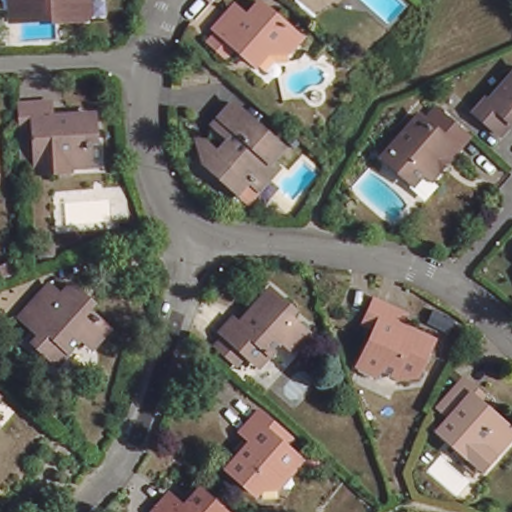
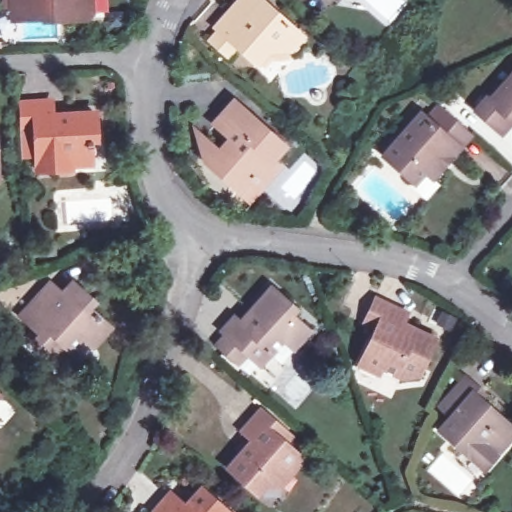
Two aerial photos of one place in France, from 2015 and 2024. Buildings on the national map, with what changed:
unchanged [(45,18),(44,15),(17,16),(17,2),(7,2),(7,0),(86,0),(86,10),(80,17),(45,18)]
unchanged [(225,50),(235,39),(231,35),(250,15),(262,26),(277,10),(317,45),(305,58),(282,59),(270,72),(252,55),(242,65),(225,50)]
unchanged [(477,110),(488,96),(492,100),(512,77),(512,120),(502,132),(477,110)]
unchanged [(30,135),(17,135),(15,93),(28,92),(45,91),(47,109),(61,109),(61,104),(89,103),(89,123),(84,124),(85,154),(64,155),(65,160),(48,161),(32,162),(30,135)]
unchanged [(237,191),(205,163),(201,143),(205,139),(222,155),(232,144),(212,127),(234,103),(284,148),(272,161),(279,168),(260,188),(247,201),(237,191)]
unchanged [(444,161),(439,165),(440,173),(430,183),(424,176),(412,188),(384,163),(422,120),(428,125),(440,111),(465,132),(470,137),(458,151),(450,161),(444,161)]
unchanged [(62,293),(73,283),(85,294),(77,302),(85,309),(87,307),(110,327),(92,346),(82,336),(58,362),(35,341),(44,331),(22,313),(50,283),(62,293)]
unchanged [(214,342),(223,332),(220,330),(232,317),(240,326),(251,314),(248,311),(270,287),(287,303),(282,308),(306,330),(291,347),(280,337),(266,353),(262,350),(254,358),(245,350),(235,361),(214,342)]
unchanged [(397,335),(407,339),(410,335),(433,345),(416,380),(398,383),(380,374),(376,381),(357,372),(375,335),(362,329),(374,305),(387,311),(405,320),(397,335)]
unchanged [(465,417),(453,406),(479,378),(492,388),(487,394),(512,416),(512,452),(499,468),(455,429),(465,417)]
unchanged [(256,486),(250,493),(222,469),(247,440),(234,429),(253,410),(283,437),(277,444),(293,458),(270,485),(256,486)]
unchanged [(194,512),(210,494),(231,512),(169,512),(180,499),(194,512)]

